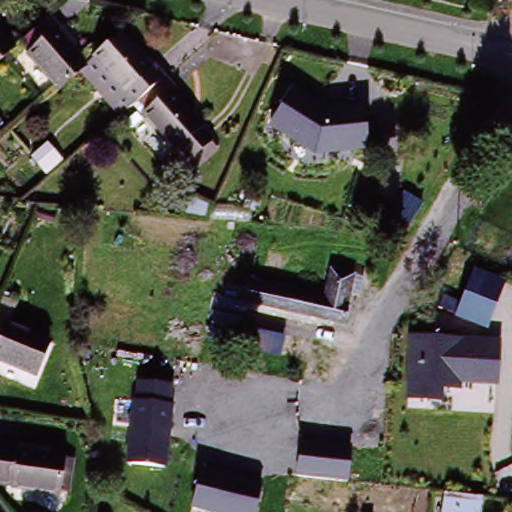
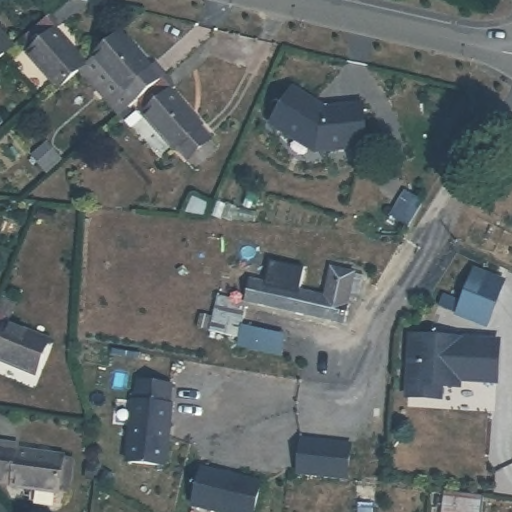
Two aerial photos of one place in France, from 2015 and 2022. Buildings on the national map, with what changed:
unchanged [(88,68),(60,91),(33,59),(39,54),(26,40),(53,16),(64,30),(59,38),(88,68)]
unchanged [(14,50),(0,63),(0,34),(14,50)]
unchanged [(133,95),(128,99),(94,62),(121,39),(156,75),(161,73),(166,79),(139,102),(133,95)]
unchanged [(191,169),(178,154),(148,123),(153,118),(139,102),(166,79),(178,93),(175,95),(206,129),(204,133),(216,148),(191,169)]
unchanged [(325,108),(363,103),(368,149),(314,155),(268,126),(294,86),(325,108)]
unchanged [(506,282),(488,329),(454,316),(436,310),(441,294),(462,299),(473,268),(506,282)]
unchanged [(231,304),(236,279),(320,299),(327,273),(350,278),(343,310),(338,326),(231,304)]
unchanged [(63,352),(49,384),(8,366),(11,358),(0,354),(0,332),(8,314),(11,305),(29,313),(26,322),(22,335),(63,352)]
unchanged [(244,312),(239,343),(211,339),(214,307),(244,312)]
unchanged [(499,340),(497,385),(461,384),(461,391),(444,391),(443,402),(404,401),(408,336),(499,340)]
unchanged [(172,384),(169,405),(173,406),(166,467),(126,464),(131,402),(136,402),(138,380),(172,384)]
unchanged [(351,441),(347,483),(295,478),(300,437),(351,441)]
unchanged [(20,455),(63,463),(57,499),(11,492),(13,483),(0,480),(0,446),(20,449),(20,455)]
unchanged [(259,484),(254,512),(213,512),(191,507),(199,468),(259,484)]
unchanged [(442,491),(479,494),(478,503),(477,512),(440,512),(441,499),(442,491)]

